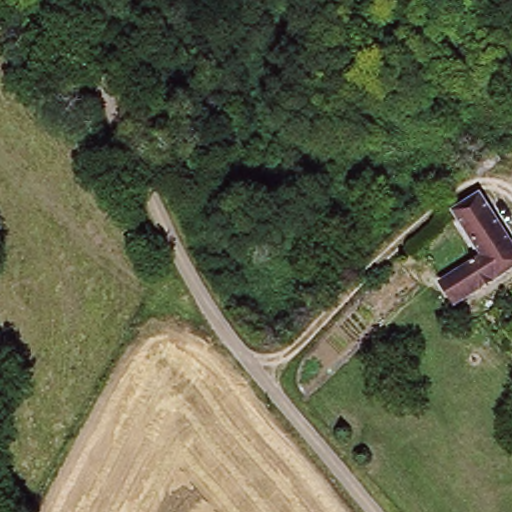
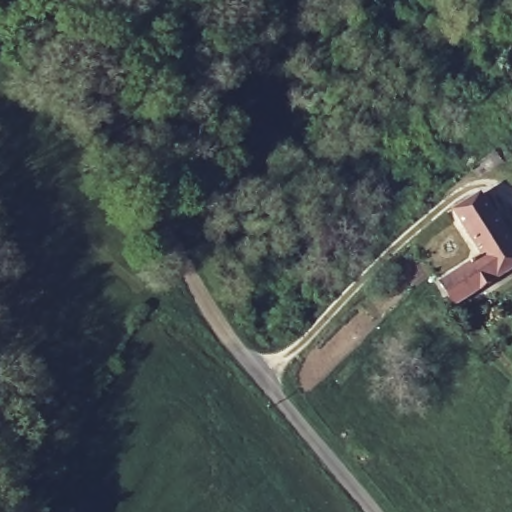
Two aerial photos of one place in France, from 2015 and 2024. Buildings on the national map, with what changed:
unchanged [(482,261),(450,222),(473,203),(512,252),(512,274),(462,313),(444,292),(482,261)]

